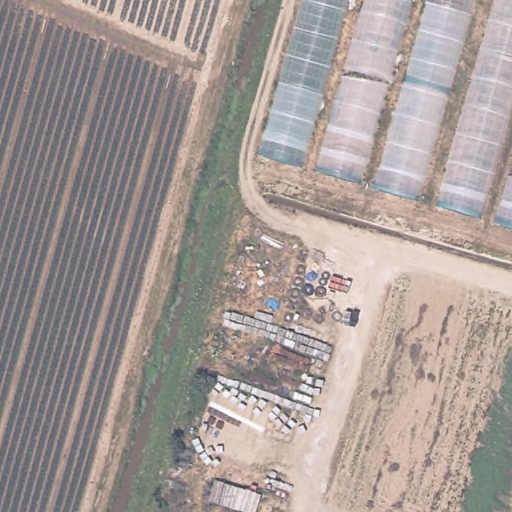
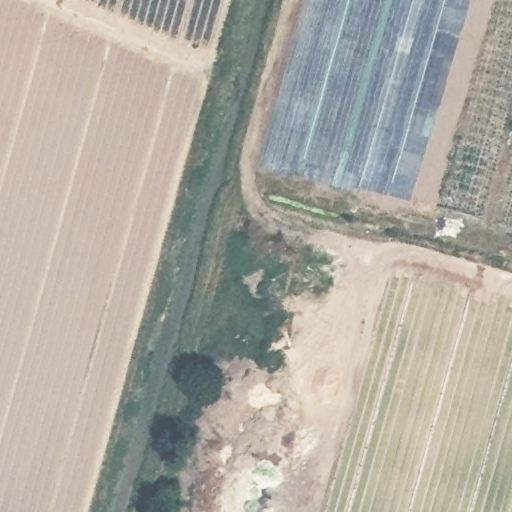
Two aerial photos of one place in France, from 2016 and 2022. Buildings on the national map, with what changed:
demolished [(265,155),(308,0),(512,0),(512,229),(265,155)]

